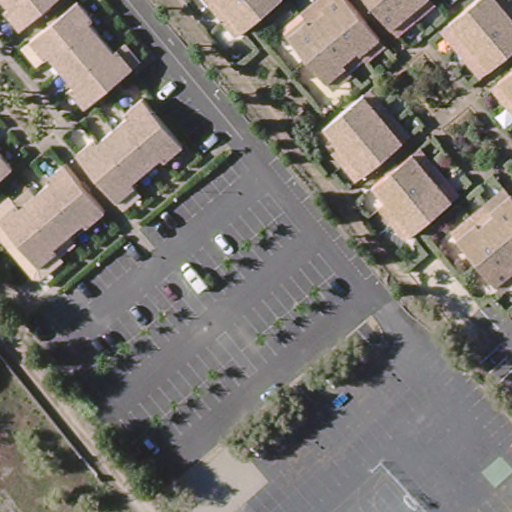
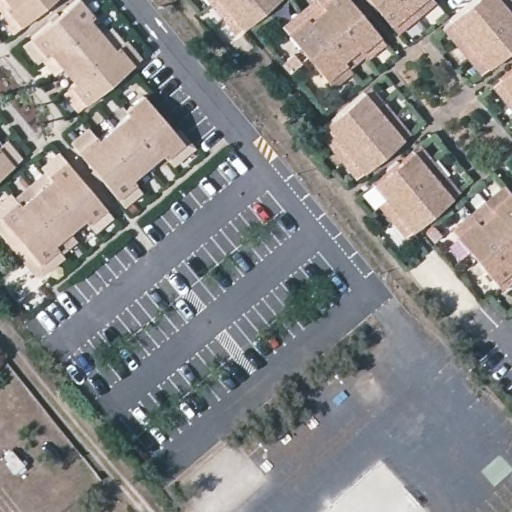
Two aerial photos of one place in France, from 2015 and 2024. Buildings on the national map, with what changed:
unchanged [(3,10),(7,7),(1,0),(49,0),(17,26),(3,10)]
unchanged [(76,0),(88,15),(85,18),(112,51),(115,48),(129,64),(82,104),(68,88),(72,84),(45,51),(40,55),(27,38),(73,0),(76,0)]
unchanged [(205,0),(273,0),(276,4),(257,19),(236,37),(225,23),(210,5),(205,0)]
unchanged [(286,37),(303,23),(322,6),(330,0),(347,0),(358,13),(381,39),(363,55),(358,49),(338,65),(342,69),(324,83),(305,59),(286,37)]
unchanged [(400,28),(377,1),(377,0),(432,0),(416,14),(400,28)]
unchanged [(448,24),(469,7),(478,0),(496,0),(502,6),(512,19),(512,49),(507,52),(486,70),(473,55),(461,40),(448,24)]
unchanged [(512,74),(512,95),(501,82),(512,74)]
unchanged [(340,143),(326,125),(348,106),(365,92),(380,110),(392,124),(404,139),(388,153),(365,173),(353,158),(340,143)]
unchanged [(183,144),(167,157),(163,154),(130,181),(133,185),(117,199),(77,151),(94,137),(97,141),(130,114),(127,110),(143,96),(183,144)]
unchanged [(401,216),(390,203),(376,186),(399,167),(415,152),(429,169),(440,183),(454,200),(438,214),(419,231),(416,234),(401,216)]
unchanged [(100,203),(84,217),(81,213),(48,241),(51,245),(35,259),(0,218),(0,206),(11,197),(15,201),(47,173),(44,170),(61,156),(100,203)]
unchanged [(7,167),(0,173),(0,159),(7,167)]
unchanged [(480,229),(498,214),(512,202),(512,278),(500,288),(484,268),(463,243),(480,229)]

